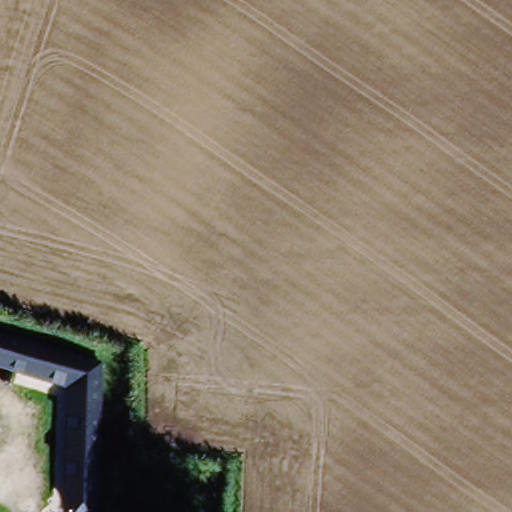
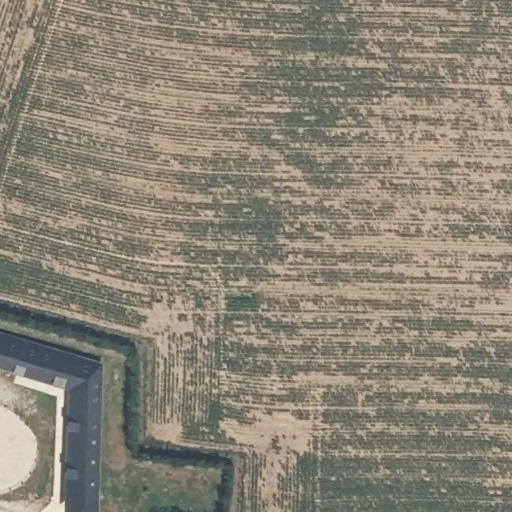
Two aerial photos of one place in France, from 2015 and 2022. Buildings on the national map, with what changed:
unchanged [(68,390),(0,369),(0,335),(106,366),(95,512),(63,512),(68,390)]

